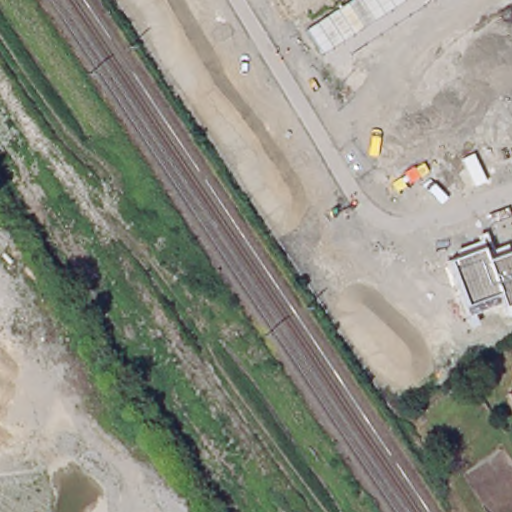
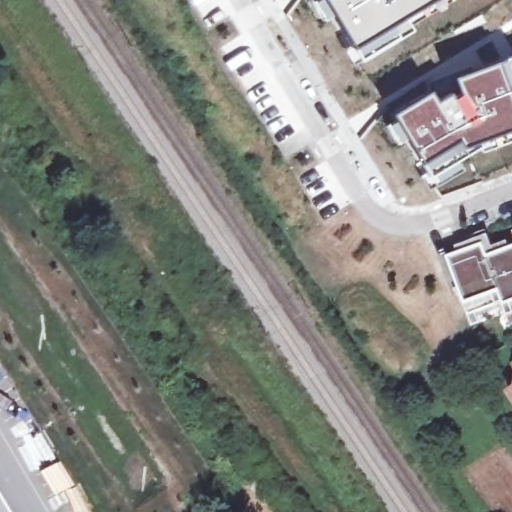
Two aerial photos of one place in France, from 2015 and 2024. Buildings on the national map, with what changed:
new [(346,47),(329,18),(323,22),(310,0),(431,0),(408,14),(412,19),(408,21),(411,26),(395,37),(355,61),(346,47)]
new [(387,118),(385,114),(428,87),(435,97),(450,88),(451,91),(455,89),(450,77),(512,52),(512,140),(473,154),(458,163),(460,166),(428,186),(403,141),(397,146),(382,122),(387,118)]
unchanged [(447,262),(480,249),(486,261),(512,251),(512,314),(507,317),(501,305),(469,316),(447,262)]
unchanged [(512,364),(512,373),(508,367),(512,364)]
unchanged [(503,390),(510,386),(512,377),(512,404),(503,390)]

